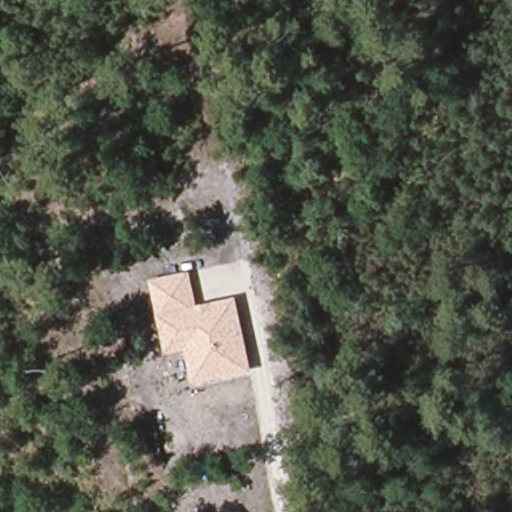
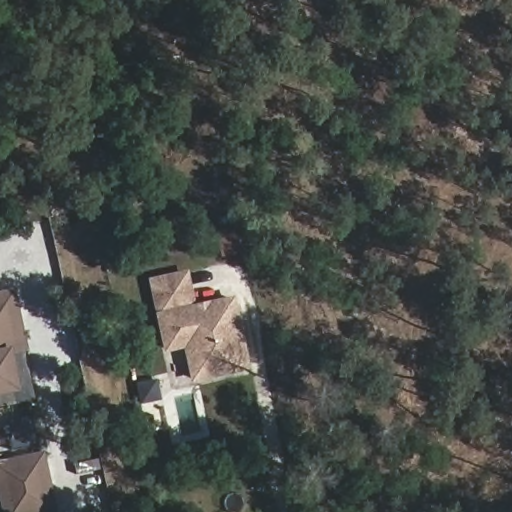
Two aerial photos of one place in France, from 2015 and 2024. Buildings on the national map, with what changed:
unchanged [(251,374),(193,385),(187,350),(165,355),(151,279),(191,271),(199,305),(236,297),(251,374)]
new [(0,407),(0,292),(15,290),(27,350),(24,351),(35,400),(0,407)]
new [(20,426),(18,419),(35,415),(41,446),(15,451),(10,428),(20,426)]
new [(0,507),(0,460),(46,451),(58,512),(1,512),(0,507)]

